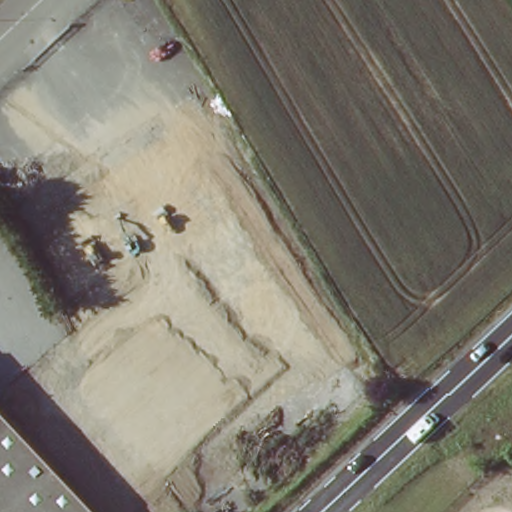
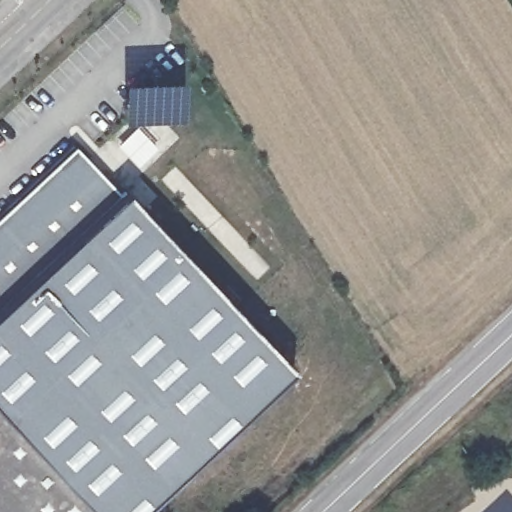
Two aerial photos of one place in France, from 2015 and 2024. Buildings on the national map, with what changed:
new [(138,166),(118,144),(138,124),(135,121),(133,122),(127,102),(125,75),(185,74),(187,106),(166,120),(145,131),(158,146),(138,166)]
demolished [(197,446),(55,211),(206,119),(348,354),(197,446)]
new [(0,210),(72,144),(118,196),(125,189),(291,367),(137,512),(93,512),(0,414),(0,210)]
unchanged [(0,512),(0,414),(93,512),(0,512)]

